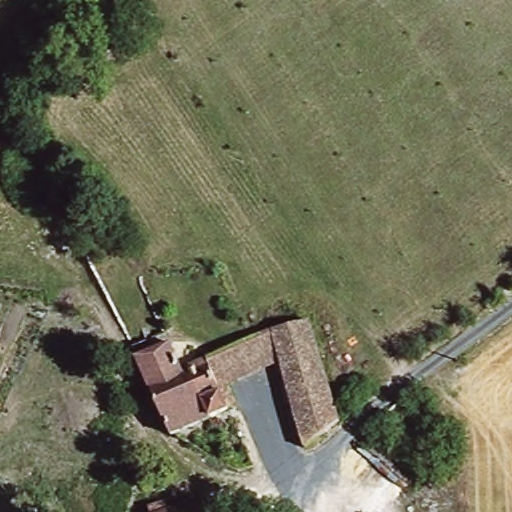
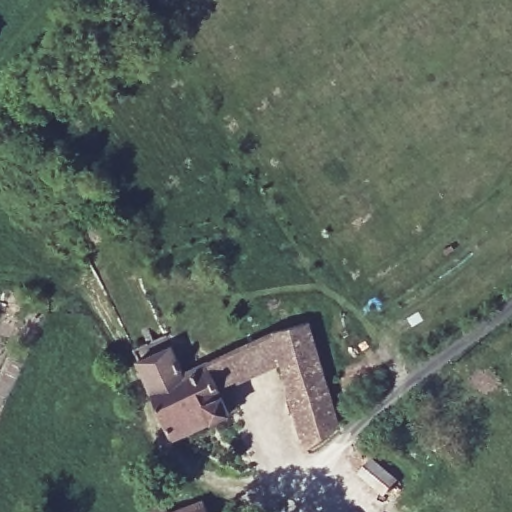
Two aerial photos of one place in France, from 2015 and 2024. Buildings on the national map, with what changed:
unchanged [(274,346),(314,337),(341,423),(309,450),(285,379),(274,346)]
unchanged [(229,411),(172,436),(137,354),(169,340),(182,370),(211,362),(224,397),(229,411)]
unchanged [(211,362),(274,346),(285,379),(224,397),(211,362)]
unchanged [(205,508),(206,512),(192,512),(205,508)]
unchanged [(169,509),(170,512),(161,512),(169,509)]

